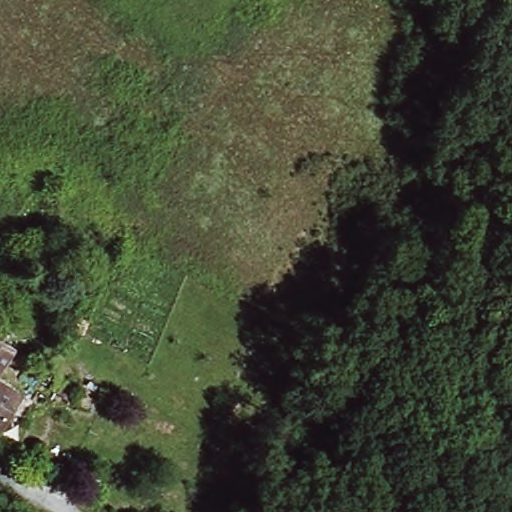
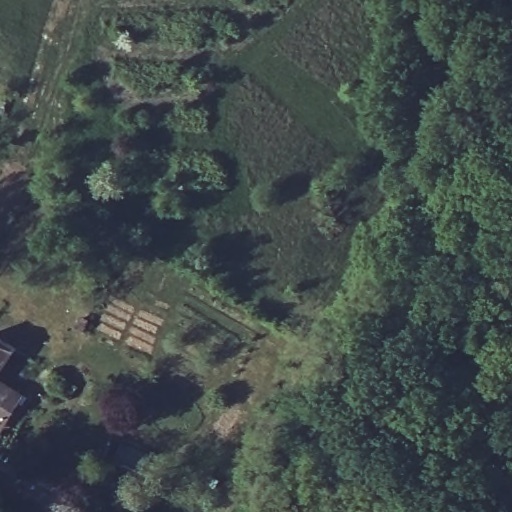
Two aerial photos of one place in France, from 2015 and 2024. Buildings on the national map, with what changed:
unchanged [(0,363),(0,335),(13,343),(0,363)]
unchanged [(55,370),(80,387),(69,402),(44,386),(55,370)]
unchanged [(4,421),(0,418),(0,378),(21,391),(4,421)]
unchanged [(71,410),(91,380),(103,387),(82,418),(71,410)]

